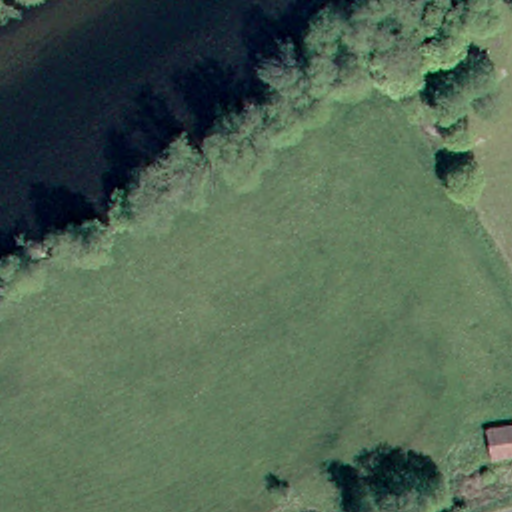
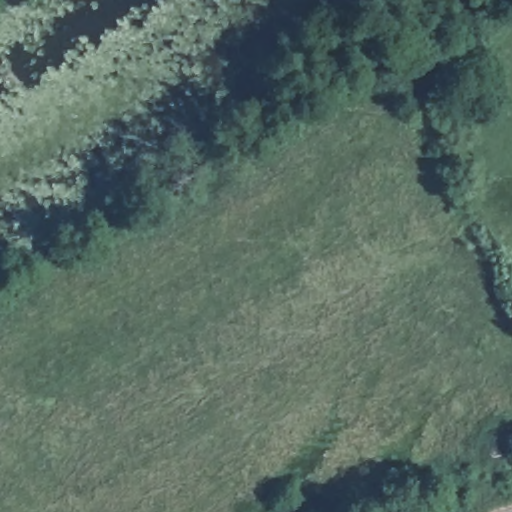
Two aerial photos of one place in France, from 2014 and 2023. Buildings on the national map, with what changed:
unchanged [(512,430),(512,456),(495,460),(490,436),(512,430)]

